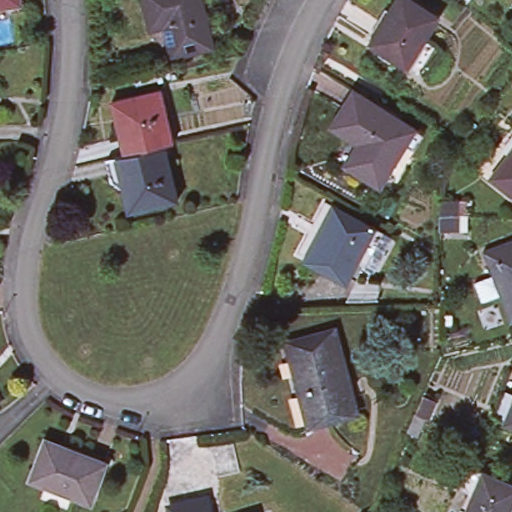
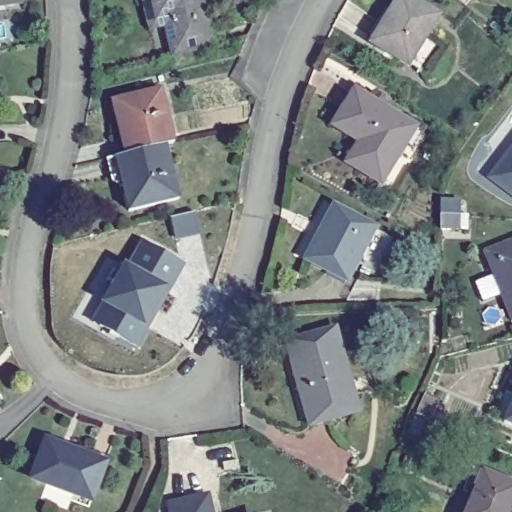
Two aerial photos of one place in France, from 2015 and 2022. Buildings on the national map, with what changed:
unchanged [(164,17),(148,21),(144,0),(192,0),(195,10),(204,8),(211,40),(171,48),(164,17)]
unchanged [(405,63),(403,65),(366,43),(392,0),(407,0),(433,16),(420,36),(430,43),(415,68),(405,63)]
unchanged [(128,212),(122,188),(115,160),(123,158),(116,128),(110,102),(159,90),(172,146),(163,149),(175,201),(128,212)]
unchanged [(334,126),(355,92),(413,128),(380,182),(348,162),(360,141),(334,126)]
unchanged [(483,176),(512,138),(512,197),(483,176)]
unchanged [(441,228),(441,212),(441,198),(458,198),(458,213),(458,229),(441,228)]
unchanged [(365,263),(354,258),(344,277),(307,258),(297,252),(325,199),(335,205),(372,224),(383,230),(365,263)]
unchanged [(470,280),(490,273),(480,249),(512,237),(512,317),(507,319),(497,292),(477,300),(470,280)]
new [(182,264),(168,291),(163,289),(143,325),(147,327),(137,346),(80,319),(100,284),(112,289),(124,267),(128,269),(142,242),(182,264)]
unchanged [(338,326),(361,411),(311,424),(288,339),(338,326)]
unchanged [(408,427),(416,410),(423,392),(437,397),(430,416),(427,415),(420,431),(408,427)]
unchanged [(505,420),(512,405),(512,422),(505,420)]
unchanged [(105,461),(91,499),(32,477),(46,440),(105,461)]
unchanged [(512,480),(512,504),(509,512),(465,512),(484,468),(512,480)]
unchanged [(168,506),(203,498),(206,512),(169,512),(168,506)]

